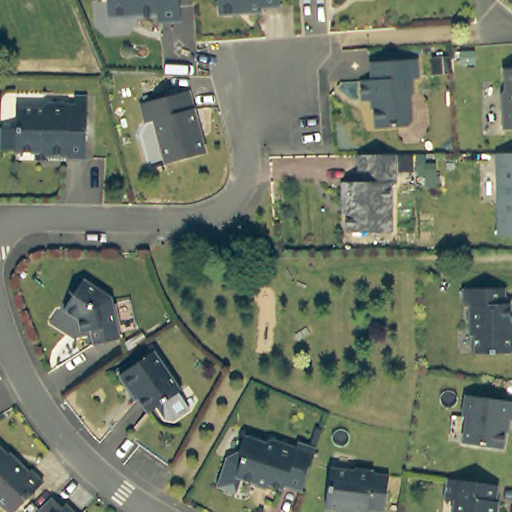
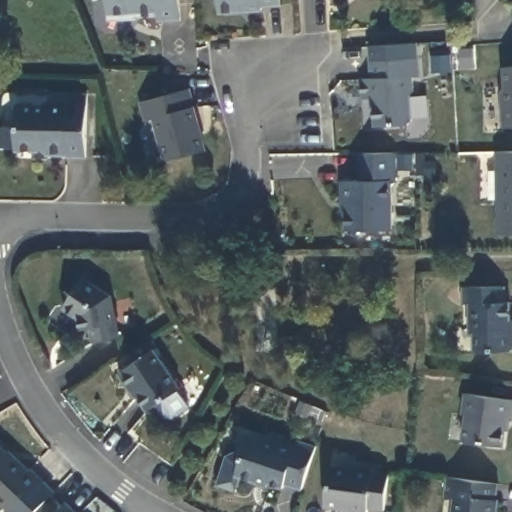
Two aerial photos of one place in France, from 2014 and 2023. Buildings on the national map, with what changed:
unchanged [(172,16),(149,18),(148,11),(128,13),(128,9),(124,9),(118,16),(105,16),(99,11),(98,0),(170,0),(172,16)]
unchanged [(271,1),(253,2),(253,6),(239,8),(235,4),(230,4),(230,8),(211,9),(210,0),(271,0),(271,1)]
unchanged [(373,80),(372,63),(420,60),(421,78),(414,78),(415,93),(412,97),(414,121),(411,127),(377,128),(375,99),(363,101),(362,81),(373,80)]
unchanged [(512,64),(512,125),(506,125),(503,87),(506,82),(505,65),(512,64)]
unchanged [(143,101),(191,88),(208,149),(168,160),(157,117),(149,120),(143,101)]
unchanged [(88,158),(67,159),(67,156),(49,157),(49,150),(17,151),(17,148),(3,148),(3,128),(16,128),(16,107),(43,107),(44,103),(76,102),(76,93),(89,94),(88,158)]
unchanged [(398,179),(393,179),(394,227),(349,228),(349,201),(345,201),(344,178),(361,178),(360,150),(397,150),(398,179)]
unchanged [(499,232),(499,150),(512,150),(512,232),(499,232)]
unchanged [(112,297),(119,340),(95,344),(92,331),(81,331),(80,319),(66,310),(85,278),(112,297)]
unchanged [(500,287),(501,302),(505,302),(506,332),(511,338),(512,347),(504,352),(471,351),(470,330),(465,325),(465,304),(459,304),(459,288),(500,287)]
unchanged [(182,391),(179,392),(191,409),(175,420),(166,418),(158,407),(149,413),(135,391),(131,393),(120,374),(154,351),(182,391)]
unchanged [(511,402),(509,420),(503,419),(498,448),(460,441),(463,415),(458,414),(461,394),(511,402)]
unchanged [(299,489),(282,485),(280,487),(264,483),(263,485),(232,477),(238,459),(235,450),(240,435),(263,442),(266,438),(292,445),(293,441),(313,446),(299,489)]
unchanged [(28,470),(41,481),(11,512),(6,512),(0,506),(0,451),(23,473),(28,470)]
unchanged [(358,461),(376,463),(376,467),(390,468),(384,507),(370,506),(369,512),(350,512),(350,505),(327,503),(332,462),(357,465),(358,461)]
unchanged [(500,500),(498,512),(453,512),(453,511),(454,499),(447,499),(449,476),(498,483),(498,500),(500,500)]
unchanged [(66,504),(74,512),(37,512),(52,497),(63,507),(66,504)]

